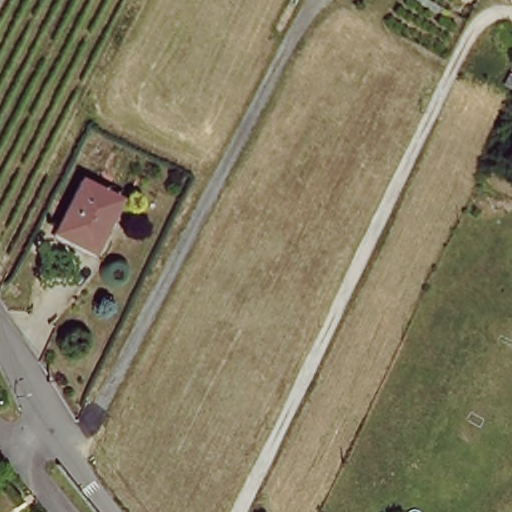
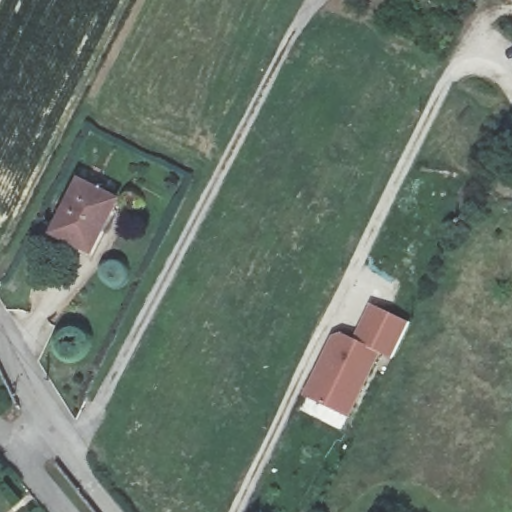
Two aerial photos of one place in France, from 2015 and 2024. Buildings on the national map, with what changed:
unchanged [(504,0),(512,0),(512,5),(504,0)]
unchanged [(79,184),(119,204),(93,255),(51,236),(79,184)]
new [(330,337),(341,335),(355,340),(370,304),(409,322),(392,360),(381,355),(351,420),(303,399),(330,337)]

